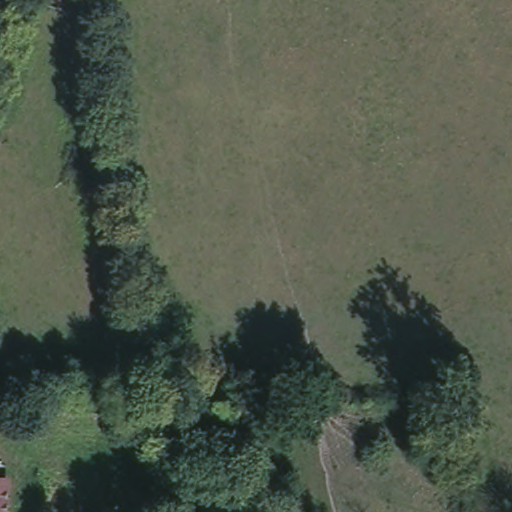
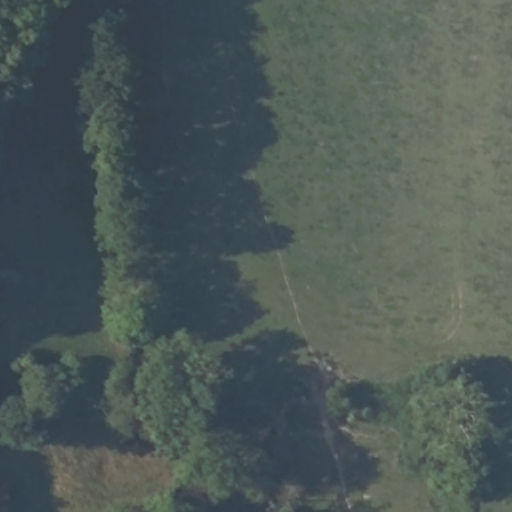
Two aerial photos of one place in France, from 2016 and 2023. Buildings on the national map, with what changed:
unchanged [(9,474),(9,512),(0,512),(0,474),(9,474)]
unchanged [(126,484),(131,509),(117,512),(109,512),(105,486),(126,484)]
unchanged [(62,500),(62,512),(43,512),(42,501),(62,500)]

